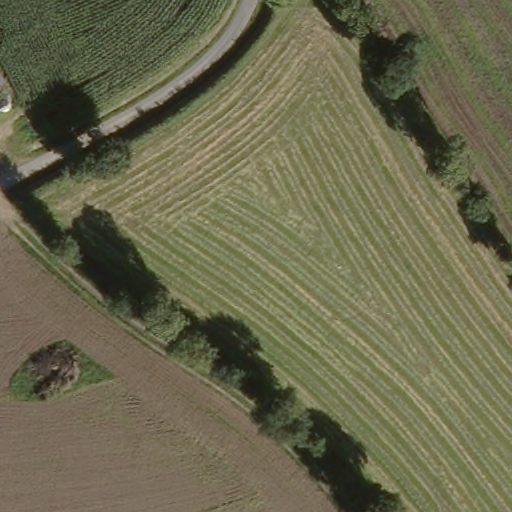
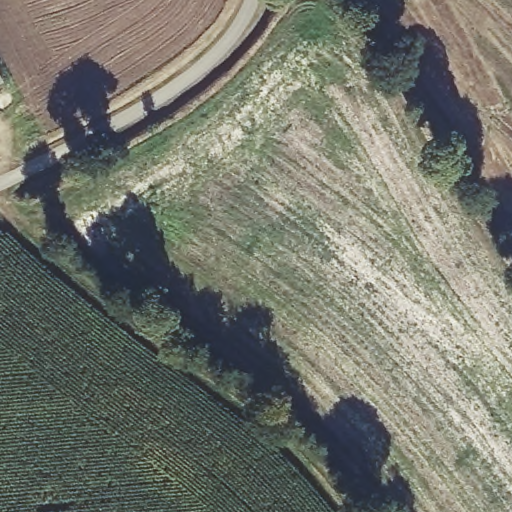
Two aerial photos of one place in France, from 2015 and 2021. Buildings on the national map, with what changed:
unchanged [(0,89),(0,80),(4,87),(0,89)]

